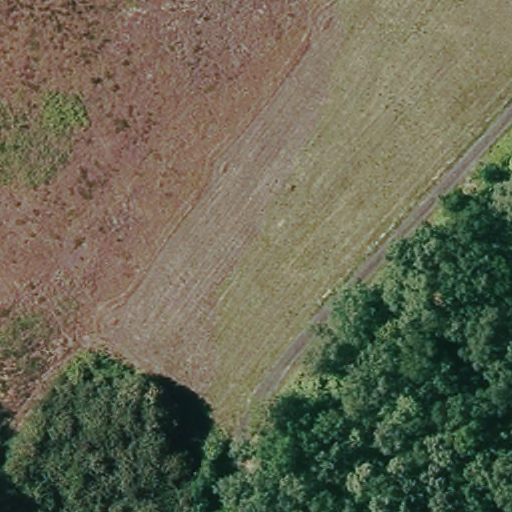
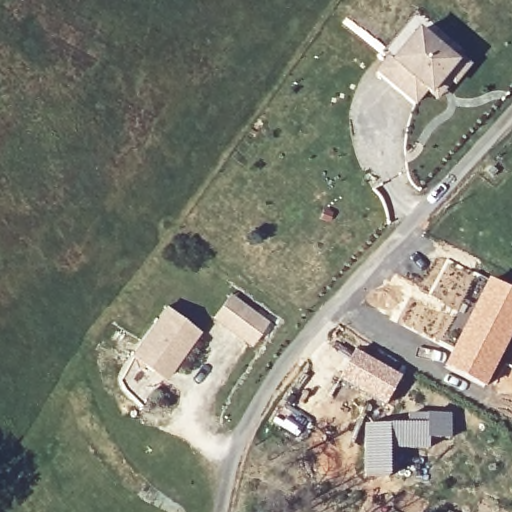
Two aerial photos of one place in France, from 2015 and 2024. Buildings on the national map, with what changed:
new [(466,46),(459,55),(470,64),(455,82),(453,81),(438,98),(426,88),(415,102),(379,72),(389,58),(382,52),(418,9),(466,46)]
new [(492,281),(512,292),(512,332),(484,386),(448,368),(492,281)]
new [(232,293),(270,322),(252,345),(213,317),(232,293)]
new [(166,305),(201,331),(164,380),(129,355),(166,305)]
new [(355,352),(400,377),(386,403),(341,378),(355,352)]

